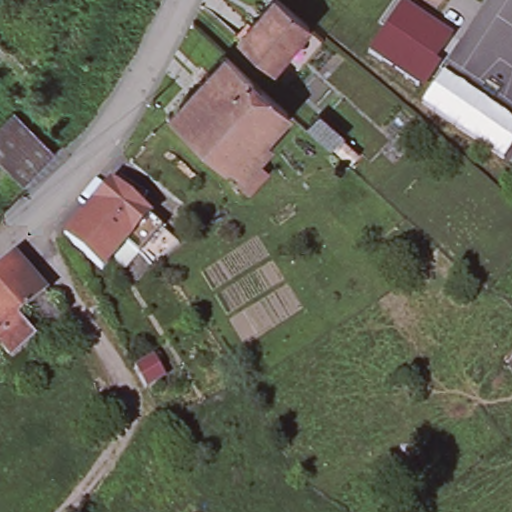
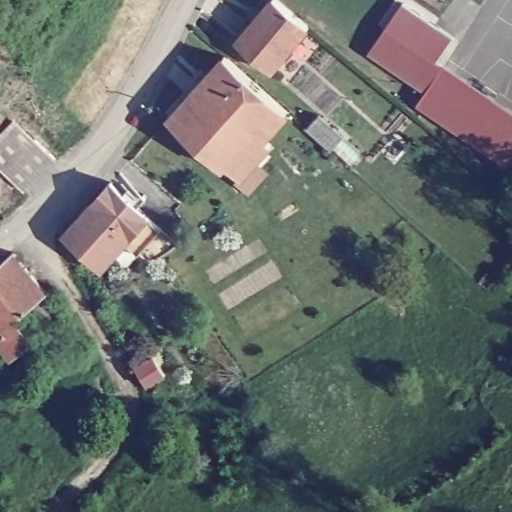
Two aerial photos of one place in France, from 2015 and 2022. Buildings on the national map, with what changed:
unchanged [(307,25),(271,69),(236,40),(269,0),(278,0),(307,25)]
unchanged [(372,47),(402,2),(446,32),(452,36),(450,40),(420,83),(418,86),(368,52),(372,47)]
unchanged [(223,55),(286,110),(262,136),(200,81),(223,55)]
new [(445,64),(512,110),(512,161),(508,167),(416,104),(425,91),(418,86),(434,63),(442,68),(445,64)]
unchanged [(171,112),(200,81),(262,136),(270,144),(240,177),(225,163),(221,167),(167,117),(171,112)]
unchanged [(330,149),(306,128),(318,115),(342,136),(330,149)]
unchanged [(0,173),(0,139),(16,124),(30,137),(54,159),(29,186),(26,184),(20,191),(0,173)]
unchanged [(106,250),(97,260),(61,227),(74,212),(106,176),(117,186),(122,181),(130,187),(137,194),(131,200),(155,222),(132,247),(119,261),(106,250)]
unchanged [(25,268),(0,290),(0,261),(11,251),(25,268)]
unchanged [(12,356),(0,341),(0,290),(25,268),(45,292),(57,306),(35,325),(22,311),(16,316),(35,338),(12,356)]
unchanged [(155,355),(165,373),(145,384),(135,366),(155,355)]

